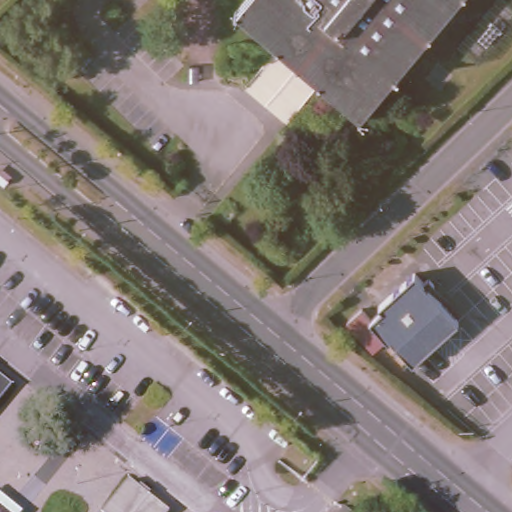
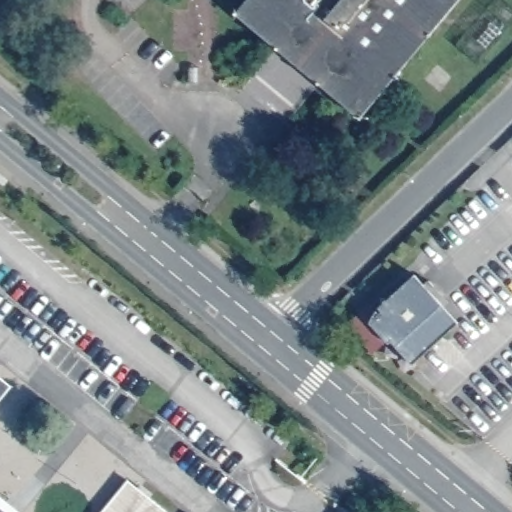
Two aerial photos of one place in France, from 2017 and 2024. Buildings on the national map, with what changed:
unchanged [(316,77),(274,41),(237,9),(245,0),(459,0),(361,116),(316,77)]
unchanged [(316,77),(284,116),(243,80),(274,41),(316,77)]
unchanged [(376,297),(413,264),(457,315),(414,355),(393,331),(389,335),(369,313),(381,303),(376,297)]
unchanged [(13,385),(0,401),(0,375),(13,385)]
unchanged [(306,465),(286,448),(300,430),(320,447),(306,465)]
unchanged [(128,477),(169,510),(168,512),(99,512),(128,477)]
unchanged [(19,511),(19,512),(0,512),(0,496),(19,511)]
unchanged [(341,510),(343,512),(339,512),(341,510)]

